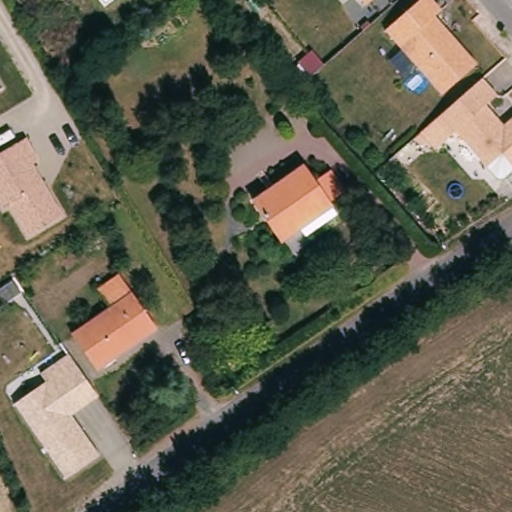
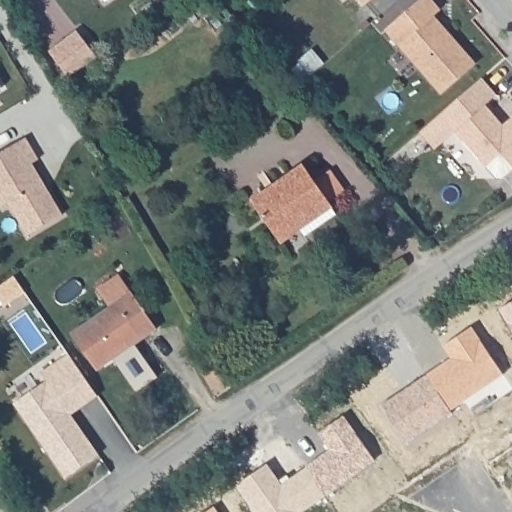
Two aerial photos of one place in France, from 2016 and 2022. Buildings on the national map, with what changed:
unchanged [(366,5),(362,0),(371,0),(366,5)]
unchanged [(433,15),(476,64),(442,94),(385,30),(419,0),(432,0),(441,10),(433,15)]
new [(77,31),(97,57),(70,79),(50,52),(77,31)]
unchanged [(495,115),(503,125),(512,118),(512,165),(502,154),(487,166),(456,131),(450,135),(436,119),(482,78),(497,95),(486,105),(495,115)]
unchanged [(1,87),(0,88),(0,86),(1,87)]
unchanged [(40,161),(34,165),(64,215),(27,235),(9,202),(2,206),(0,202),(0,152),(25,137),(40,161)]
unchanged [(332,173),(347,192),(335,203),(342,214),(312,235),(307,227),(288,242),(260,201),(308,166),(320,182),(332,173)]
unchanged [(102,369),(78,333),(116,307),(106,290),(125,276),(161,328),(102,369)]
new [(512,331),(500,310),(512,302),(512,331)]
new [(452,358),(443,345),(472,326),(503,373),(451,409),(427,374),(452,358)]
unchanged [(14,403),(45,383),(39,373),(69,354),(98,398),(71,415),(98,457),(66,478),(14,403)]
new [(427,374),(451,409),(453,412),(407,443),(382,405),(427,374)]
new [(331,449),(319,433),(343,415),(376,460),(327,495),(307,466),(307,465),(331,449)]
new [(283,484),(307,466),(327,495),(302,512),(254,512),(236,485),(268,463),(283,484)]
new [(218,512),(208,512),(215,507),(218,512)]

